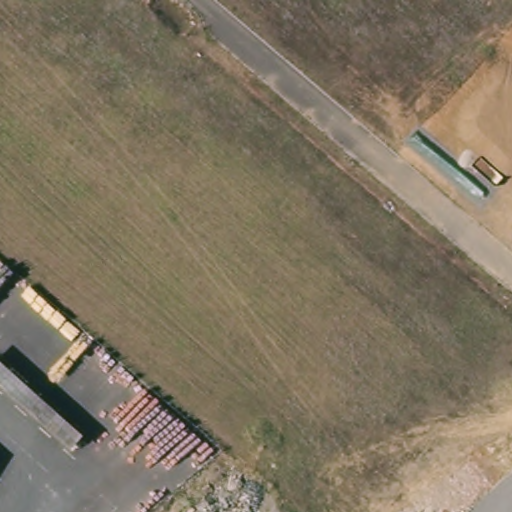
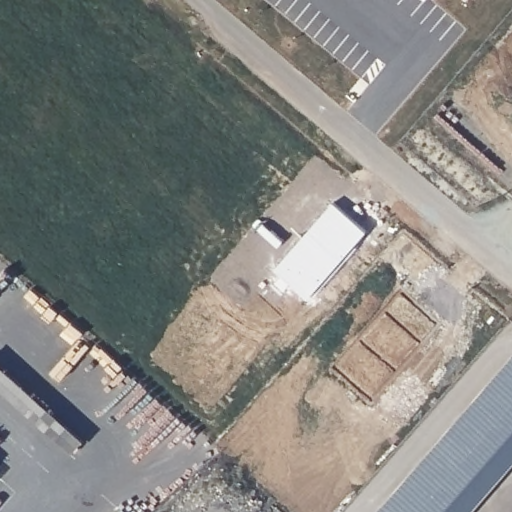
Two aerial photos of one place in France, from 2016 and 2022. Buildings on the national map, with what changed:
new [(512,467),(473,512),(380,512),(512,361),(512,467)]

